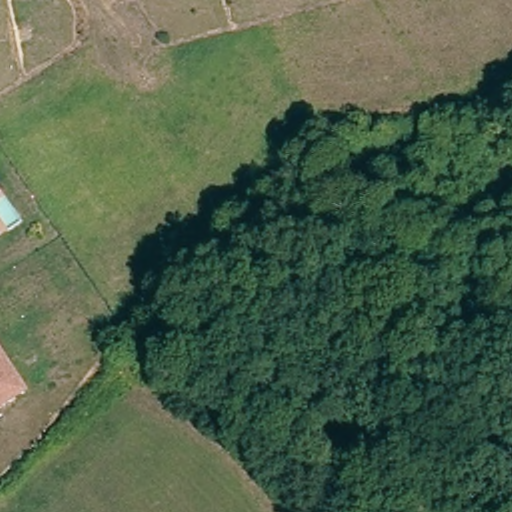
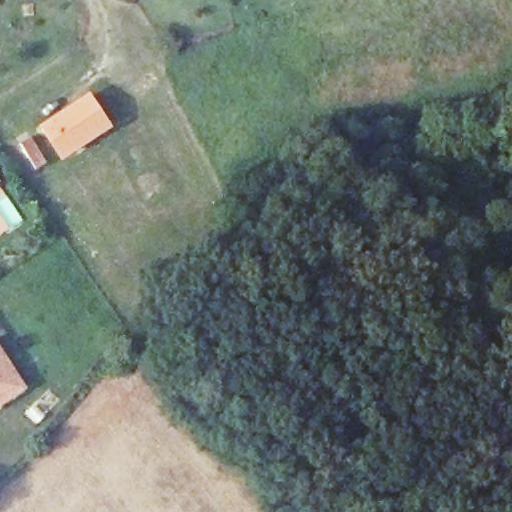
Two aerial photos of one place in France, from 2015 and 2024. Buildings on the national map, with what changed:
new [(39,124),(90,93),(113,128),(62,161),(39,124)]
unchanged [(27,380),(0,397),(0,338),(27,380)]

